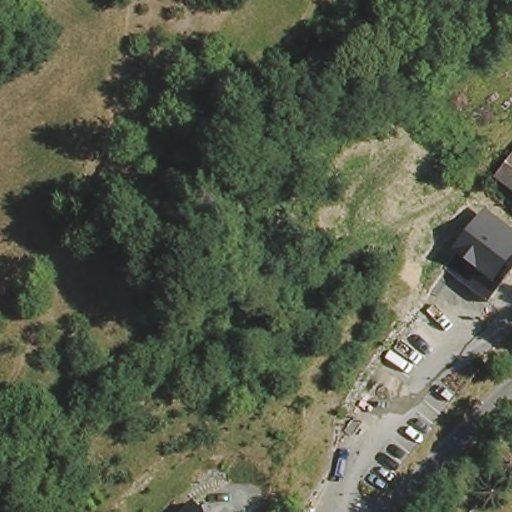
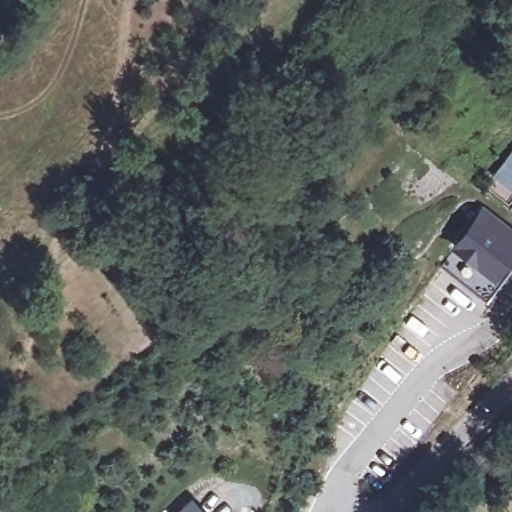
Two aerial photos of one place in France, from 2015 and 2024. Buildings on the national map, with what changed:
unchanged [(501,168),(512,155),(512,179),(501,168)]
unchanged [(512,228),(512,268),(487,300),(445,268),(452,249),(486,207),(512,228)]
unchanged [(167,512),(185,495),(201,512),(167,512)]

